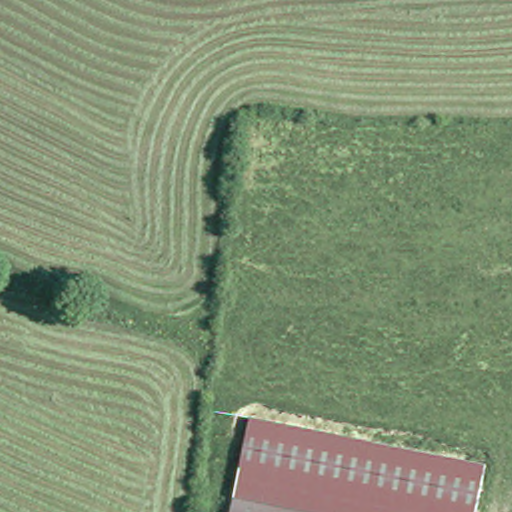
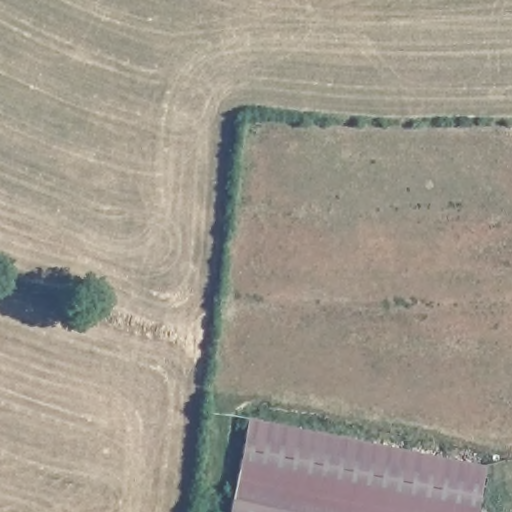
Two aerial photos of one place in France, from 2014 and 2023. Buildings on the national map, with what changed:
unchanged [(484,465),(475,512),(311,512),(232,496),(248,416),(484,465)]
unchanged [(229,512),(232,496),(311,512),(229,512)]

